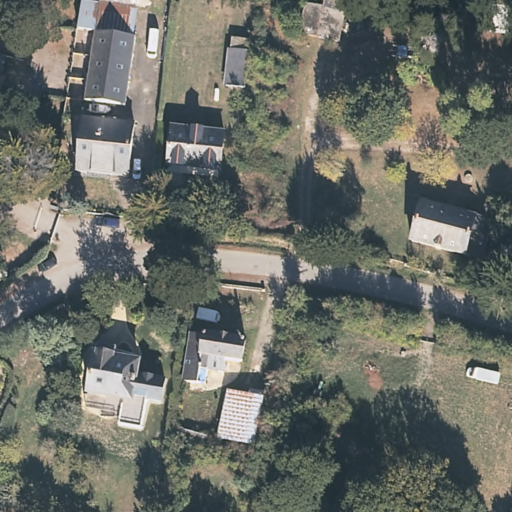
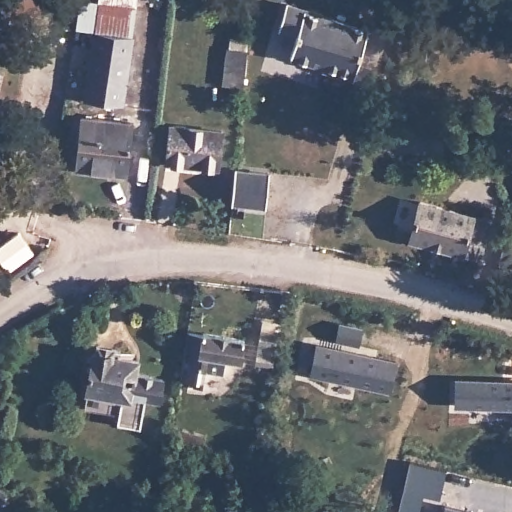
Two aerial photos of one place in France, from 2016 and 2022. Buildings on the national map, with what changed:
unchanged [(136,33),(128,101),(89,96),(99,20),(101,0),(131,4),(128,25),(127,31),(136,33)]
unchanged [(429,9),(429,0),(448,0),(448,11),(429,9)]
new [(354,77),(293,58),(299,36),(282,31),(288,2),(322,11),(321,15),(370,29),(354,77)]
unchanged [(249,47),(245,83),(225,81),(230,45),(249,47)]
unchanged [(80,167),(86,121),(135,127),(129,178),(111,176),(80,173),(80,167)]
unchanged [(224,132),(221,169),(168,163),(172,127),(224,132)]
new [(236,172),(271,176),(268,210),(233,206),(236,172)]
unchanged [(480,221),(482,215),(488,218),(476,261),(406,241),(416,203),(480,221)]
unchanged [(255,341),(251,363),(235,360),(233,372),(208,368),(209,363),(197,361),(201,336),(214,338),(215,335),(255,341)]
new [(391,392),(311,376),(317,343),(399,360),(391,392)]
unchanged [(118,352),(117,358),(140,362),(130,416),(123,415),(125,400),(90,393),(99,348),(118,352)]
demolished [(223,439),(221,445),(214,443),(215,437),(223,439)]
new [(473,512),(445,512),(447,506),(473,512)]
new [(302,507),(323,512),(300,512),(302,507)]

